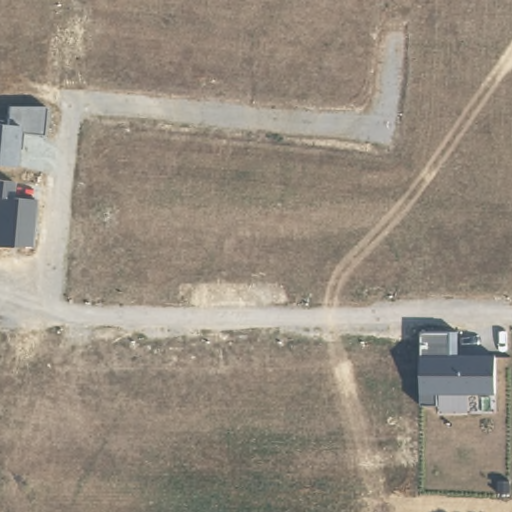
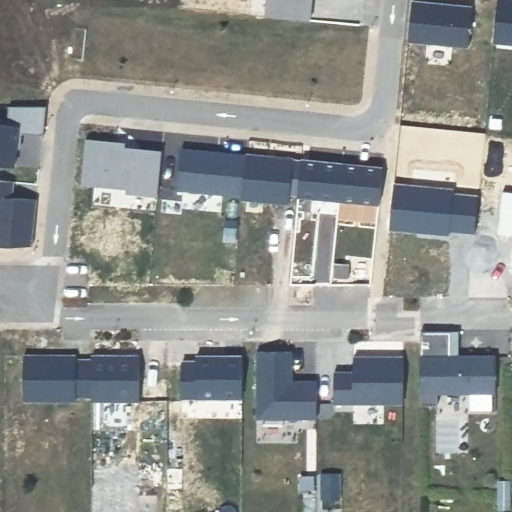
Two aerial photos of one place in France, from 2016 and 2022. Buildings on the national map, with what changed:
new [(472,6),(467,49),(408,41),(413,0),(472,6)]
new [(512,45),(493,43),(495,0),(512,0),(512,45)]
unchanged [(17,135),(14,164),(0,163),(0,126),(12,127),(12,107),(47,105),(45,134),(17,135)]
new [(126,141),(124,147),(161,150),(157,197),(126,194),(127,189),(82,185),(85,138),(126,141)]
new [(289,205),(241,199),(242,197),(177,190),(182,148),(246,155),(293,158),(289,205)]
new [(383,167),(378,205),(297,197),(302,159),(383,167)]
unchanged [(31,244),(0,243),(0,200),(33,201),(31,244)]
unchanged [(495,393),(438,393),(438,404),(420,403),(421,331),(458,331),(459,355),(495,356),(495,393)]
unchanged [(316,420),(257,416),(257,351),(291,350),(291,382),(317,382),(316,420)]
new [(140,355),(139,403),(93,402),(93,398),(76,397),(75,402),(22,402),(23,355),(77,355),(77,357),(92,357),(92,355),(140,355)]
new [(242,356),(241,398),(195,396),(180,396),(181,362),(196,362),(195,356),(242,356)]
new [(402,356),(401,405),(333,403),(334,371),(353,372),(354,356),(402,356)]

